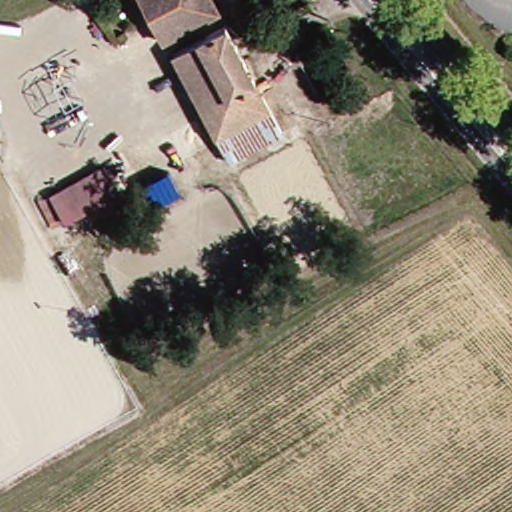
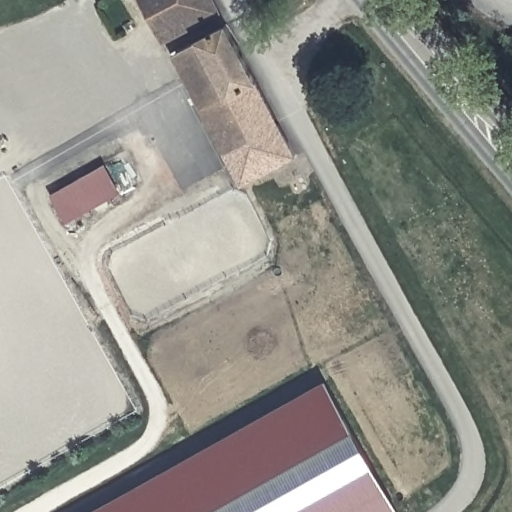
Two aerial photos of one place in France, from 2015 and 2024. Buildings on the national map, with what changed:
unchanged [(169,40),(148,0),(217,0),(224,12),(169,40)]
unchanged [(222,138),(177,54),(231,25),(276,109),(222,138)]
unchanged [(276,109),(288,131),(234,160),(222,138),(276,109)]
unchanged [(127,153),(142,180),(65,221),(51,195),(127,153)]
new [(389,512),(101,512),(320,389),(389,512)]

